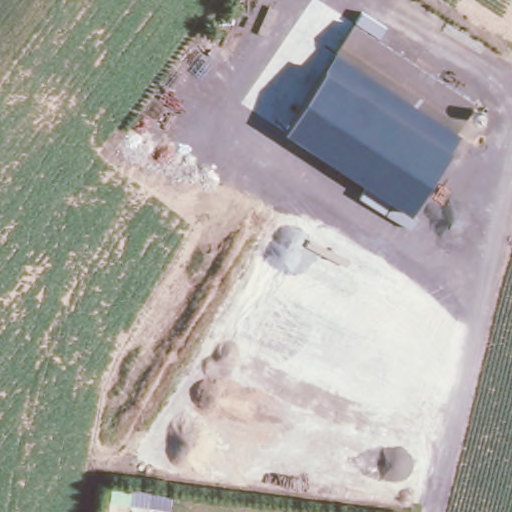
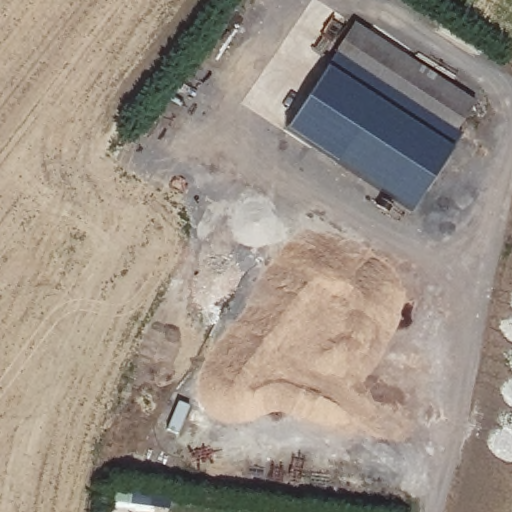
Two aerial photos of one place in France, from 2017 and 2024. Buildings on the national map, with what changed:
unchanged [(485,112),(475,124),(462,117),(455,134),(334,57),(352,26),(485,112)]
unchanged [(462,138),(412,214),(285,131),(334,57),(455,134),(462,138)]

